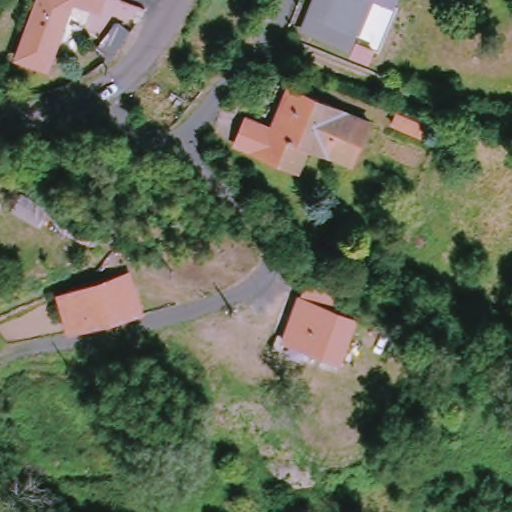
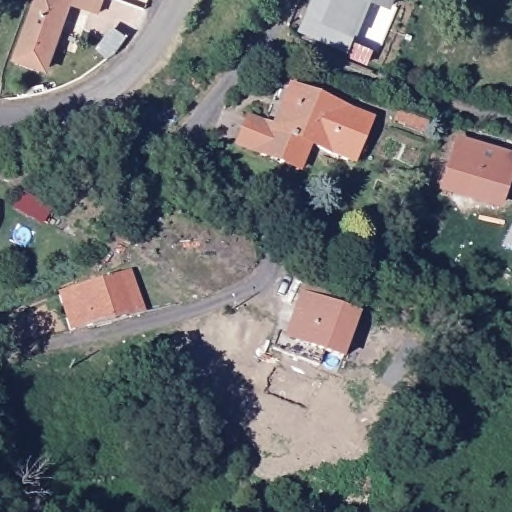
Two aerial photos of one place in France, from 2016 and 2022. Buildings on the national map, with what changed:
unchanged [(18,57),(38,0),(72,0),(48,69),(18,57)]
unchanged [(324,16),(330,0),(365,0),(353,29),(351,28),(343,46),(315,34),(324,16)]
unchanged [(381,0),(388,0),(387,3),(381,0)]
unchanged [(361,61),(345,54),(350,41),(366,48),(361,61)]
unchanged [(304,153),(296,174),(229,146),(242,116),(267,127),(283,86),(366,121),(351,168),(304,153)]
new [(433,200),(454,145),(512,164),(512,181),(498,223),(433,200)]
unchanged [(56,297),(127,274),(131,288),(139,315),(131,317),(66,333),(56,297)]
unchanged [(353,319),(338,359),(321,353),(314,368),(268,350),(274,335),(283,338),(299,299),(353,319)]

